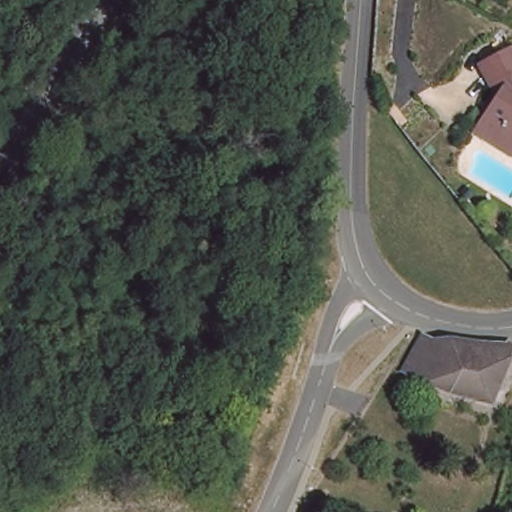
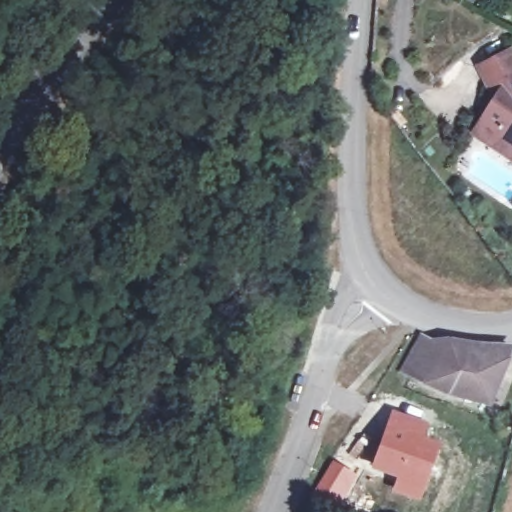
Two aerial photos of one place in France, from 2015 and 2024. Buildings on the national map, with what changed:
unchanged [(481,137),(502,102),(487,68),(512,56),(512,155),(497,146),(481,137)]
unchanged [(402,371),(418,337),(448,344),(450,338),(477,342),(507,348),(483,402),(402,371)]
new [(391,408),(429,422),(424,437),(441,443),(420,502),(390,492),(396,478),(369,468),(391,408)]
new [(358,475),(335,512),(330,512),(309,500),(332,459),(358,475)]

